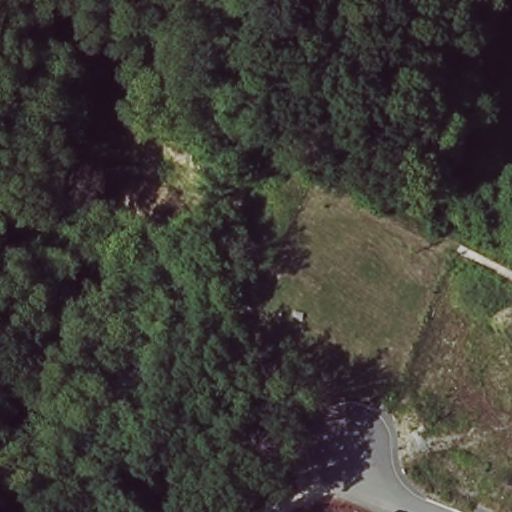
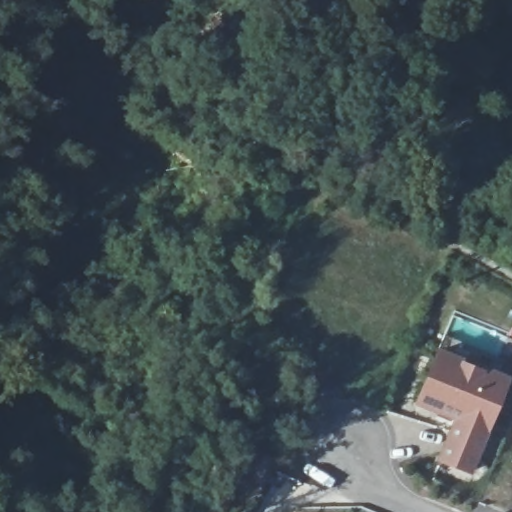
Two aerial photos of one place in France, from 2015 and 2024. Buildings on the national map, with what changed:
new [(438,351),(508,379),(471,472),(440,460),(458,418),(418,402),(438,351)]

